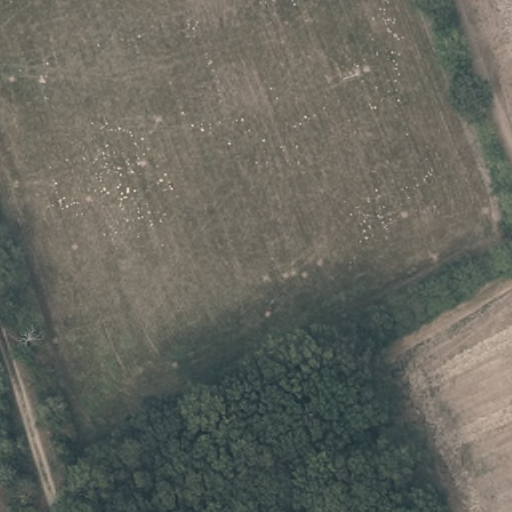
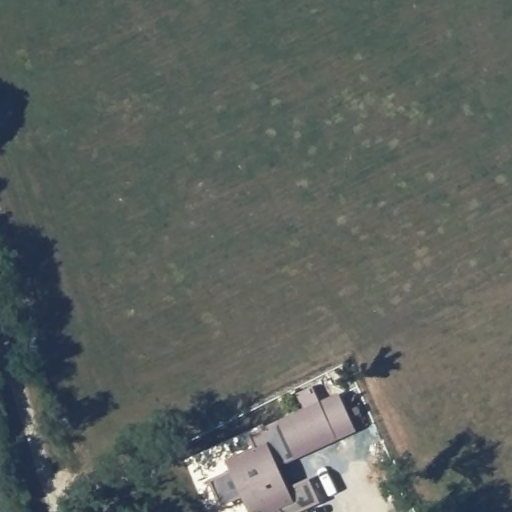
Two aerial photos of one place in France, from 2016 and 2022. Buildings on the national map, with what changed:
new [(229,468),(225,458),(254,448),(247,434),(340,390),(357,430),(296,460),(295,456),(278,463),(285,480),(293,484),(307,477),(319,504),(300,512),(279,512),(278,511),(277,512),(249,512),(242,497),(219,506),(207,479),(229,468)]

